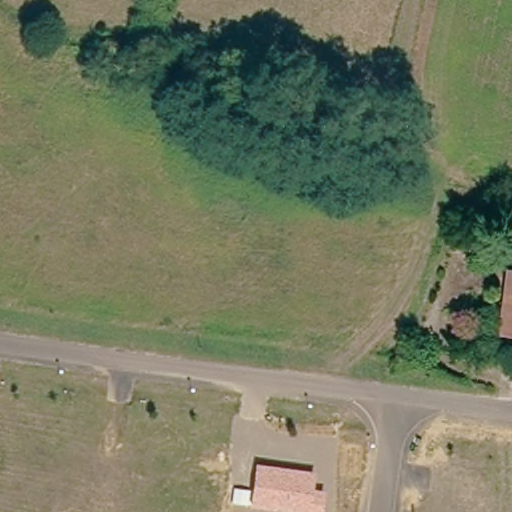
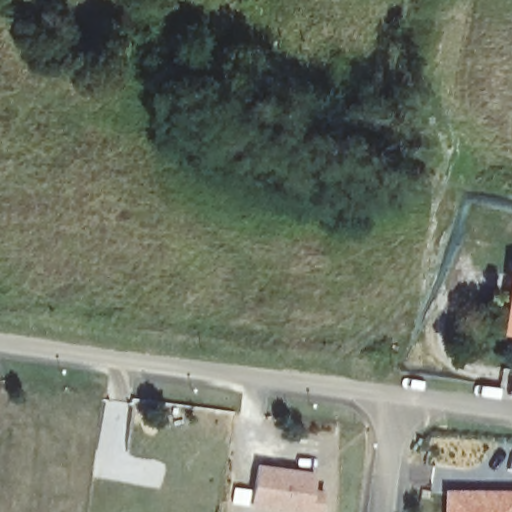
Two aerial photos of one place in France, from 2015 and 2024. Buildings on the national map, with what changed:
unchanged [(512,300),(512,332),(508,332),(512,300)]
unchanged [(313,489),(326,492),(323,512),(286,512),(250,507),(255,464),(313,473),(313,489)]
new [(512,489),(512,512),(442,512),(442,487),(512,489)]

